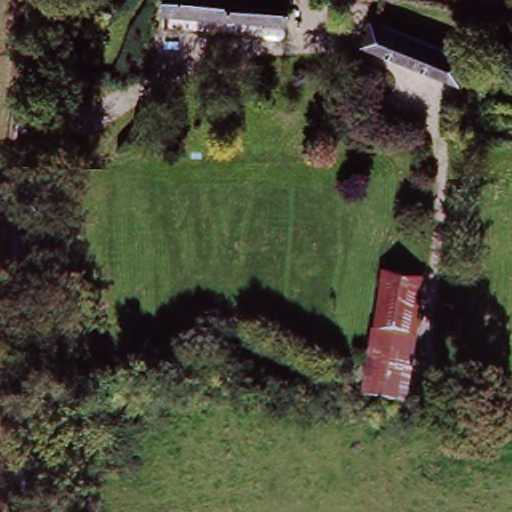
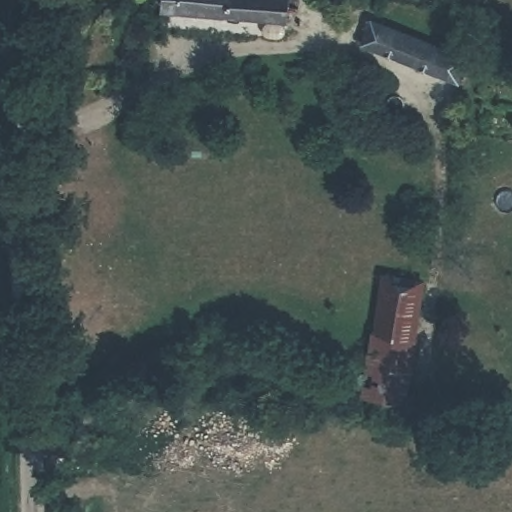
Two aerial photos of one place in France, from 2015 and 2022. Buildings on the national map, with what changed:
unchanged [(158,14),(159,0),(288,0),(288,23),(158,14)]
unchanged [(466,83),(366,51),(372,26),(472,57),(466,83)]
unchanged [(364,392),(367,372),(382,295),(421,301),(404,377),(401,396),(364,392)]

